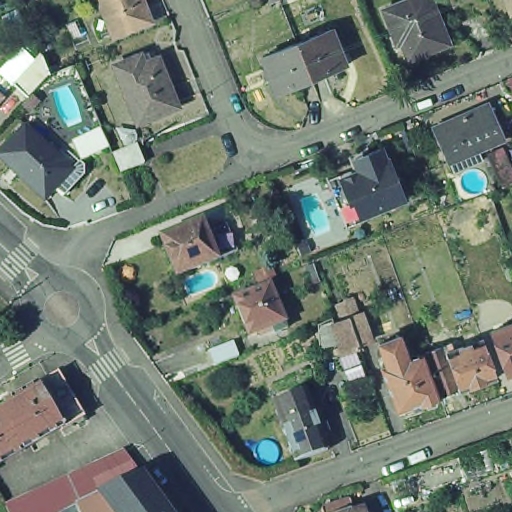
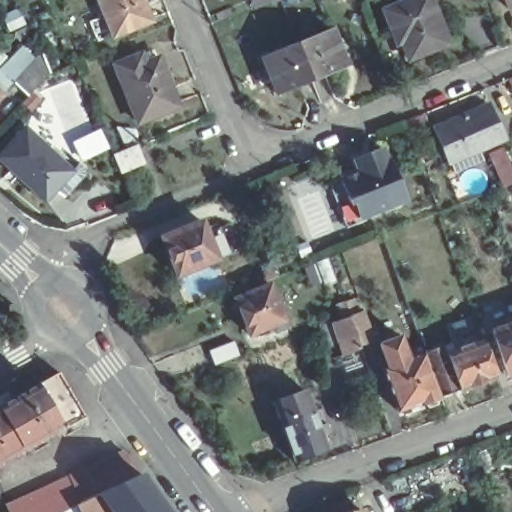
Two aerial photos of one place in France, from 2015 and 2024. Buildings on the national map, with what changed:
unchanged [(113,36),(99,0),(143,0),(151,21),(113,36)]
unchanged [(408,0),(431,0),(449,44),(408,60),(402,43),(397,45),(393,36),(383,10),(408,0)]
unchanged [(507,0),(512,0),(512,11),(507,0)]
unchanged [(331,30),(346,66),(312,80),(297,44),(331,30)]
unchanged [(312,80),(277,94),(262,57),(297,44),(312,80)]
unchanged [(42,54),(50,72),(28,96),(14,84),(42,54)]
unchanged [(115,65),(141,55),(145,64),(159,58),(178,106),(138,122),(115,65)]
unchanged [(0,98),(0,95),(2,96),(0,98)]
unchanged [(448,172),(445,162),(430,129),(483,105),(498,139),(473,150),(477,160),(448,172)]
unchanged [(45,201),(0,159),(0,156),(25,128),(72,171),(45,201)]
unchanged [(137,145),(144,164),(121,172),(113,155),(137,145)]
unchanged [(360,177),(356,167),(370,161),(368,159),(381,154),(392,184),(397,182),(402,196),(405,205),(360,222),(345,229),(342,220),(330,190),(340,185),(360,177)]
unchanged [(217,260),(177,276),(161,237),(202,221),(206,234),(215,230),(220,245),(212,247),(217,260)]
unchanged [(305,271),(314,267),(318,280),(310,283),(305,271)]
unchanged [(235,299),(270,285),(285,320),(250,335),(235,299)]
unchanged [(370,340),(359,343),(360,348),(344,354),(333,323),(350,317),(344,302),(352,298),(358,314),(362,313),(370,340)]
unchanged [(507,374),(492,331),(512,324),(512,372),(507,374)]
unchanged [(415,412),(412,405),(397,411),(382,369),(388,367),(380,344),(398,336),(407,360),(424,353),(440,398),(421,405),(422,409),(415,412)]
unchanged [(497,378),(495,378),(460,391),(447,353),(454,350),(482,340),(483,340),(497,378)]
unchanged [(454,350),(447,353),(460,391),(441,398),(440,398),(424,353),(425,353),(452,343),(454,350)]
unchanged [(86,417),(63,430),(62,429),(27,450),(1,405),(60,371),(86,417)]
unchanged [(325,425),(327,432),(322,434),(327,450),(295,462),(280,421),(273,402),(305,390),(312,410),(319,427),(325,425)]
unchanged [(0,406),(1,405),(27,450),(0,465),(0,406)]
unchanged [(78,505),(63,512),(11,512),(7,505),(20,500),(125,450),(142,475),(170,512),(82,512),(78,505)]
unchanged [(322,510),(350,500),(354,512),(322,512),(322,510)]
unchanged [(362,510),(362,512),(357,512),(362,510)]

